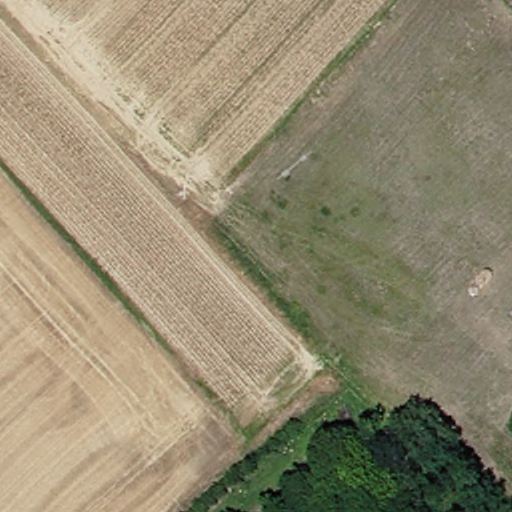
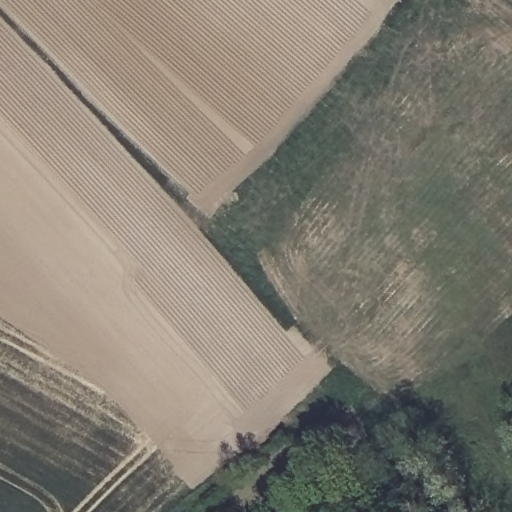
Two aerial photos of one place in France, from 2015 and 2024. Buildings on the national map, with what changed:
[]

